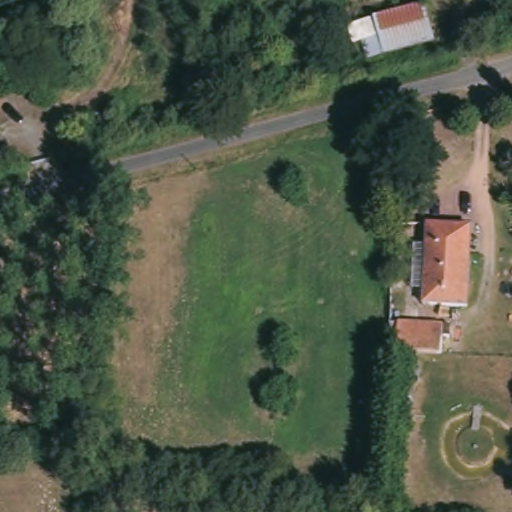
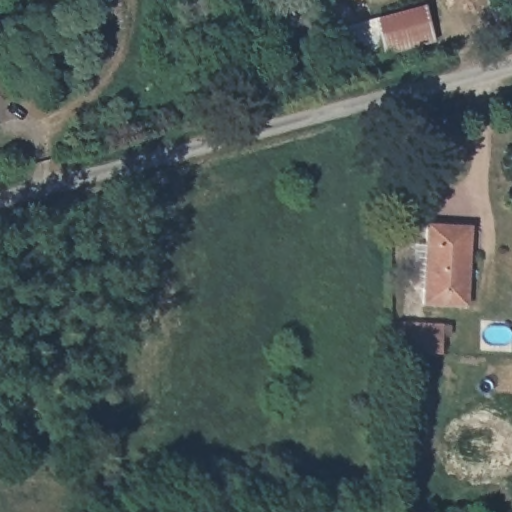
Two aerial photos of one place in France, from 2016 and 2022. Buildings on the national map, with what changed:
unchanged [(512,2),(511,0),(512,0),(512,2)]
unchanged [(424,3),(437,40),(388,56),(375,20),(424,3)]
unchanged [(14,144),(16,165),(0,166),(0,146),(14,144)]
unchanged [(425,245),(425,227),(460,226),(460,253),(467,253),(469,305),(428,306),(427,288),(414,288),(413,246),(425,245)]
unchanged [(436,325),(437,353),(397,355),(396,326),(436,325)]

